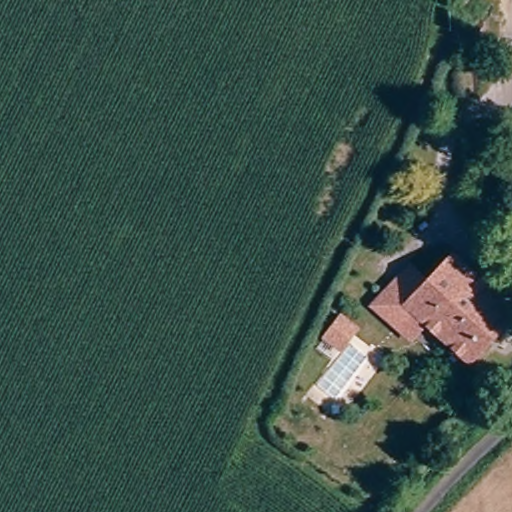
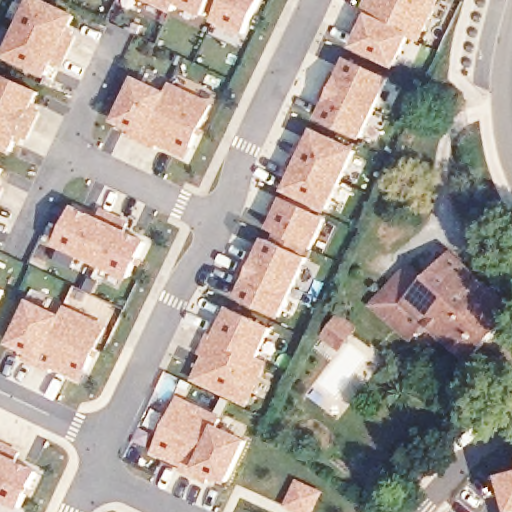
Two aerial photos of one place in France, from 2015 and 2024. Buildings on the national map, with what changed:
new [(36,0),(74,18),(67,33),(75,36),(68,50),(20,28),(34,0),(36,0)]
new [(172,11),(149,0),(177,0),(176,2),(172,11)]
new [(213,0),(205,16),(176,2),(177,0),(213,0)]
new [(260,0),(244,34),(214,20),(224,0),(260,0)]
new [(373,4),(375,0),(434,0),(437,1),(417,43),(408,39),(361,16),(368,3),(373,4)]
new [(361,16),(408,39),(395,67),(356,49),(362,34),(355,30),(361,16)]
new [(20,28),(68,50),(62,64),(54,60),(47,75),(7,57),(20,28)]
new [(334,74),(342,77),(349,62),(388,81),(375,110),(327,88),(334,74)]
new [(39,94),(32,109),(40,113),(33,127),(0,111),(0,75),(39,94)]
new [(136,81),(164,95),(142,143),(128,136),(132,129),(117,121),(136,81)]
new [(164,95),(169,86),(210,106),(186,158),(158,144),(156,149),(142,143),(164,95)]
new [(327,88),(375,110),(361,139),(321,120),(329,105),(321,101),(327,88)]
new [(33,127),(27,141),(19,137),(12,152),(0,146),(0,111),(33,127)]
new [(300,145),(308,149),(315,134),(354,153),(341,182),(293,159),(300,145)]
new [(293,159),(341,182),(327,211),(287,192),(294,177),(287,173),(293,159)]
new [(0,186),(0,165),(8,169),(0,186)]
new [(278,199),(325,222),(311,251),(272,232),(279,218),(271,214),(278,199)]
new [(131,283),(57,248),(77,208),(151,243),(131,283)]
new [(252,253),(260,257),(267,241),(307,260),(293,289),(246,266),(252,253)]
unchanged [(512,306),(512,321),(476,362),(430,321),(412,304),(429,285),(455,255),(512,306)]
new [(246,266),(293,289),(280,318),(240,299),(247,284),(239,280),(246,266)]
unchanged [(412,304),(430,321),(415,339),(381,309),(414,272),(429,285),(412,304)]
new [(0,308),(0,285),(9,289),(0,308)]
new [(84,382),(55,369),(52,374),(22,361),(26,354),(11,348),(32,301),(61,314),(67,307),(111,327),(84,382)]
new [(216,324),(223,327),(231,312),(271,331),(257,359),(210,337),(216,324)]
unchanged [(339,317),(356,332),(344,344),(327,330),(339,317)]
new [(207,353),(203,351),(210,337),(257,359),(266,364),(246,406),(194,381),(207,353)]
new [(228,487),(213,479),(210,484),(153,456),(181,398),(224,417),(220,427),(250,441),(228,487)]
new [(23,511),(0,500),(0,452),(42,473),(23,511)]
new [(512,476),(512,500),(505,478),(512,476)]

